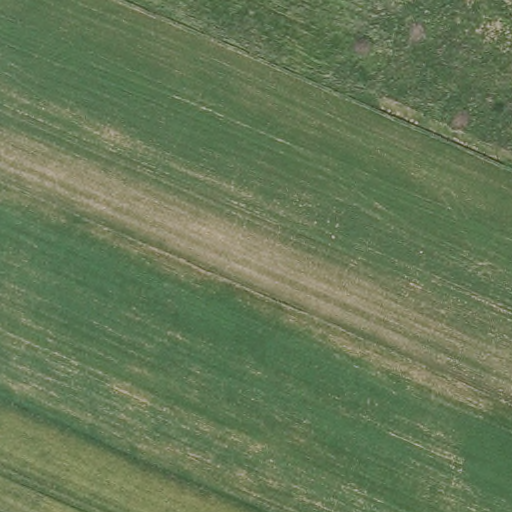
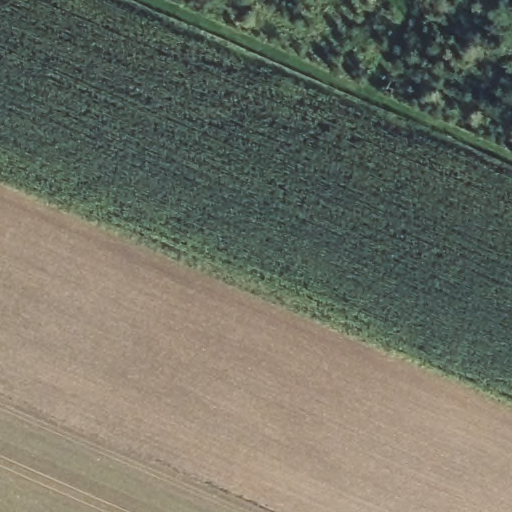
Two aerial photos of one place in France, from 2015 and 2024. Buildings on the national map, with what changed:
[]

